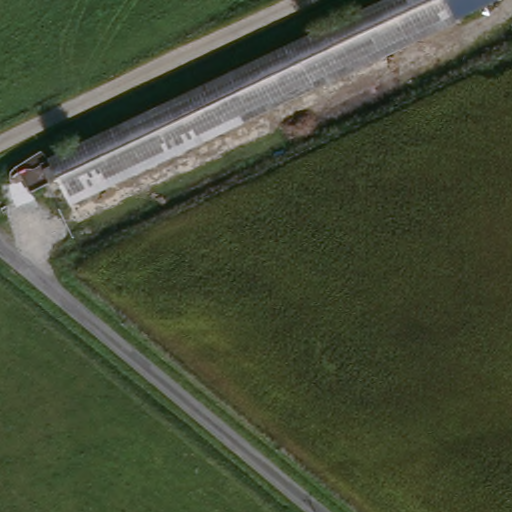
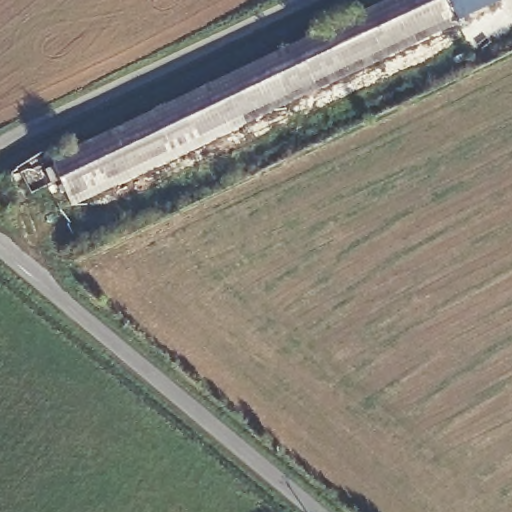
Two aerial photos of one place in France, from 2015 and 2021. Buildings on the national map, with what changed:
unchanged [(60,164),(56,156),(394,0),(455,0),(463,16),(76,197),(68,180),(59,184),(51,167),(60,164)]

